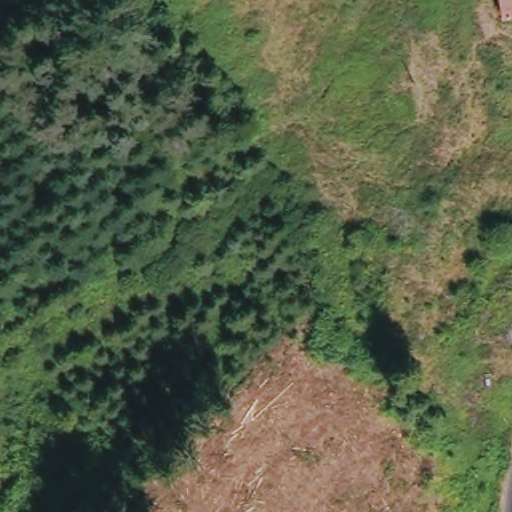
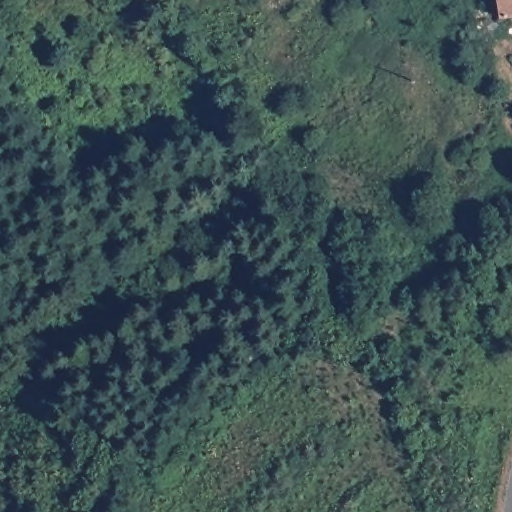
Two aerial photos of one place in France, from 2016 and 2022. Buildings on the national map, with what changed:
unchanged [(496,15),(495,0),(512,0),(512,13),(496,15)]

